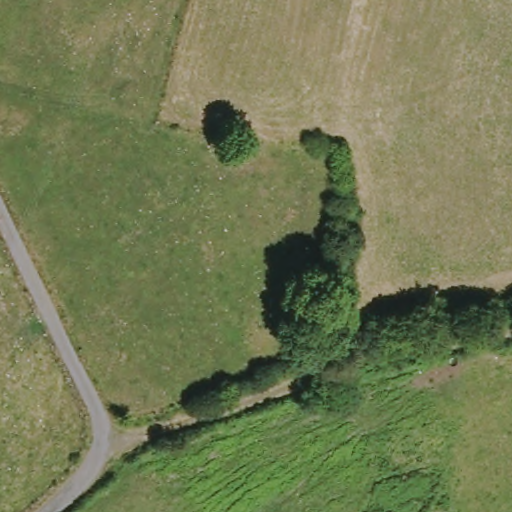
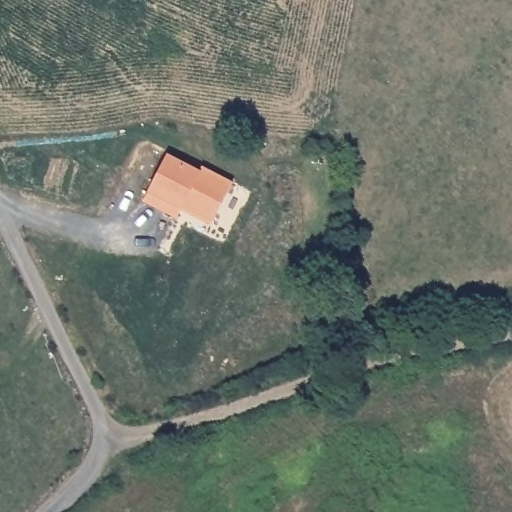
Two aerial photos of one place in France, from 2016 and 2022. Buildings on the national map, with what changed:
new [(199,176),(202,171),(233,187),(212,231),(182,214),(177,224),(143,207),(167,158),(199,176)]

